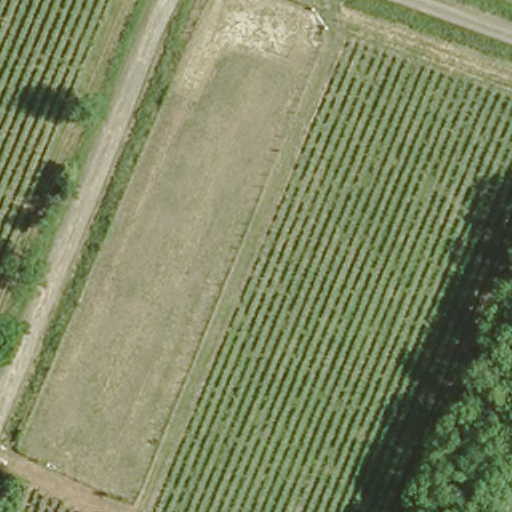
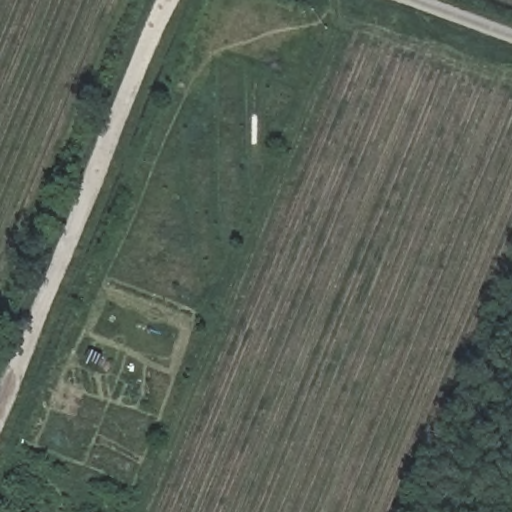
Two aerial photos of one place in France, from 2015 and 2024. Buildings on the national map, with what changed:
[]

